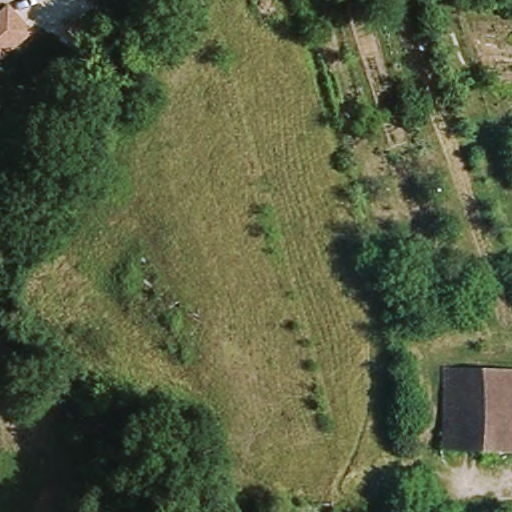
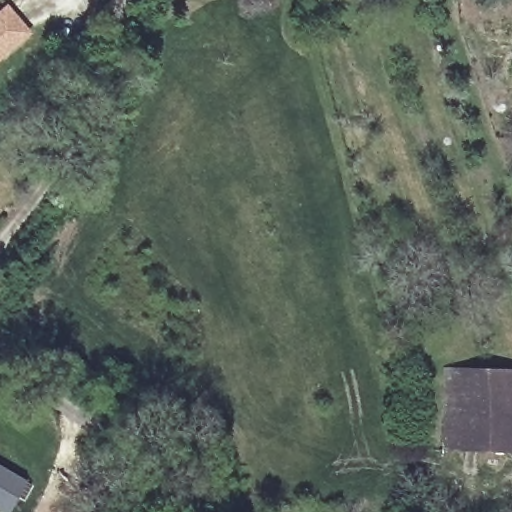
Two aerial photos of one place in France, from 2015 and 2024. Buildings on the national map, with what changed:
unchanged [(5,8),(28,33),(0,59),(0,13),(5,8)]
unchanged [(441,450),(444,370),(508,372),(506,451),(441,450)]
unchanged [(508,372),(512,372),(512,452),(506,451),(508,372)]
new [(0,511),(0,466),(26,481),(9,512),(1,512),(0,511)]

